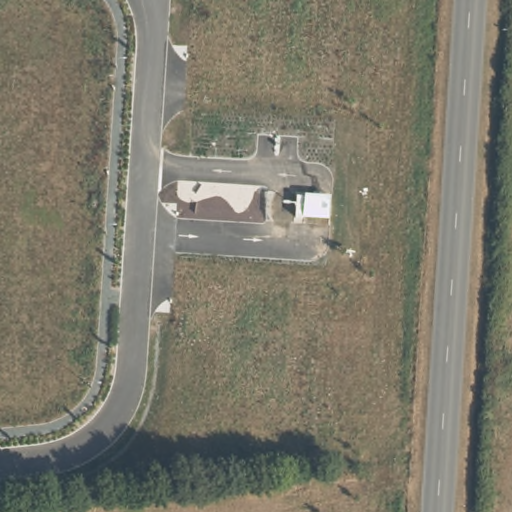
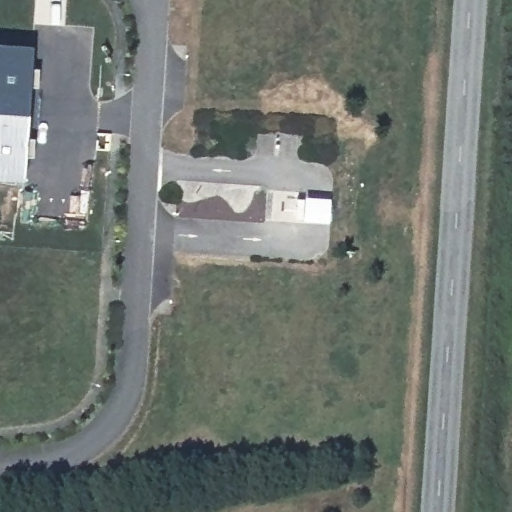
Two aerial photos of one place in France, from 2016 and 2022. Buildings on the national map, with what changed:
new [(25,179),(0,177),(0,40),(34,41),(25,179)]
new [(297,197),(305,197),(305,194),(332,197),(331,221),(305,220),(305,218),(296,216),(297,197)]

